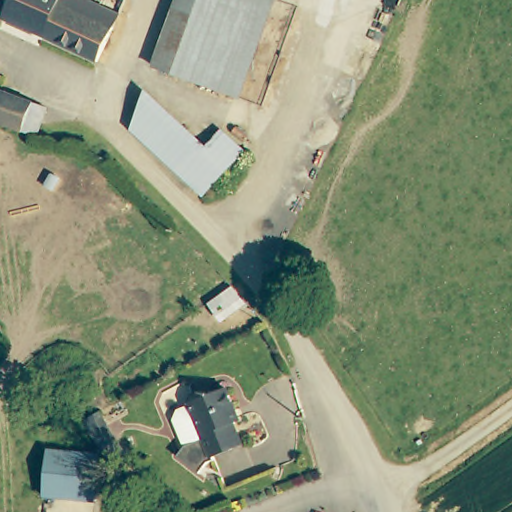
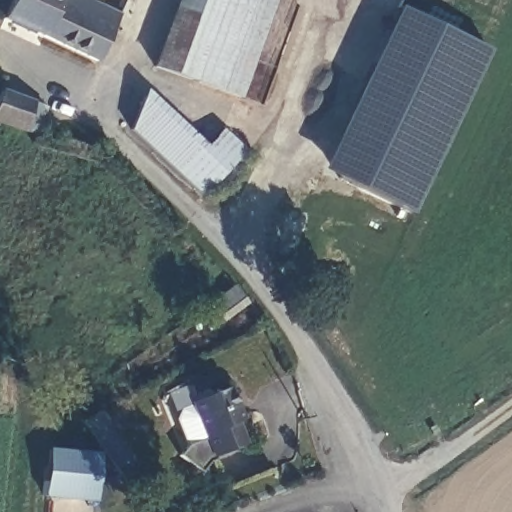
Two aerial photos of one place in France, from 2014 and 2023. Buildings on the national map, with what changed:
unchanged [(98,61),(4,18),(12,0),(90,0),(119,14),(98,61)]
unchanged [(156,61),(178,0),(274,0),(239,93),(156,61)]
new [(400,4),(490,46),(412,210),(367,188),(380,161),(335,139),(400,4)]
unchanged [(39,139),(0,123),(0,102),(5,90),(52,109),(39,139)]
unchanged [(247,146),(205,191),(179,170),(129,129),(142,101),(146,93),(205,144),(221,125),(247,146)]
new [(335,139),(380,161),(367,188),(322,166),(335,139)]
unchanged [(200,434),(191,408),(195,399),(207,394),(206,391),(209,384),(219,380),(226,384),(243,378),(253,406),(253,407),(253,408),(252,410),(251,412),(249,414),(257,435),(225,446),(227,450),(221,451),(212,462),(191,444),(200,434)]
unchanged [(78,424),(95,415),(124,465),(110,474),(78,424)]
unchanged [(43,496),(36,495),(40,447),(48,448),(89,452),(84,499),(43,496)]

